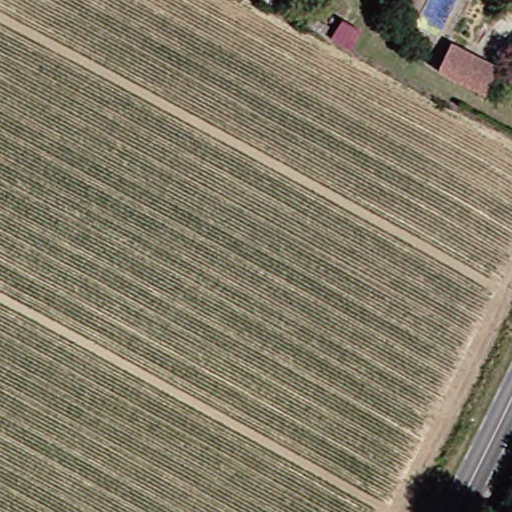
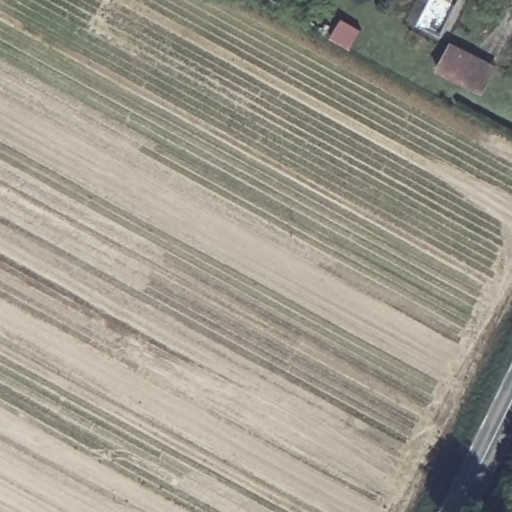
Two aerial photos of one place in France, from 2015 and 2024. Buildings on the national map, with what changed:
unchanged [(439,69),(452,43),(499,65),(485,93),(439,69)]

